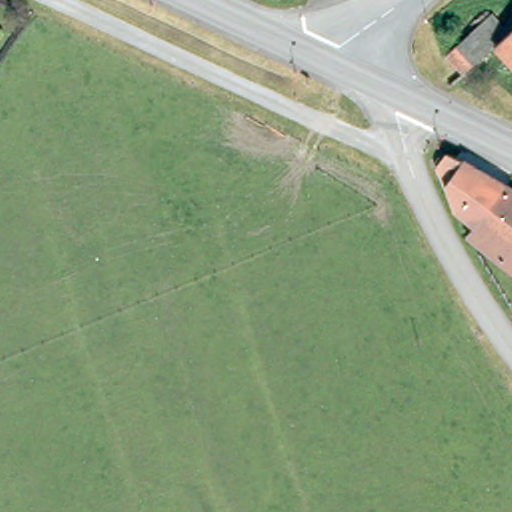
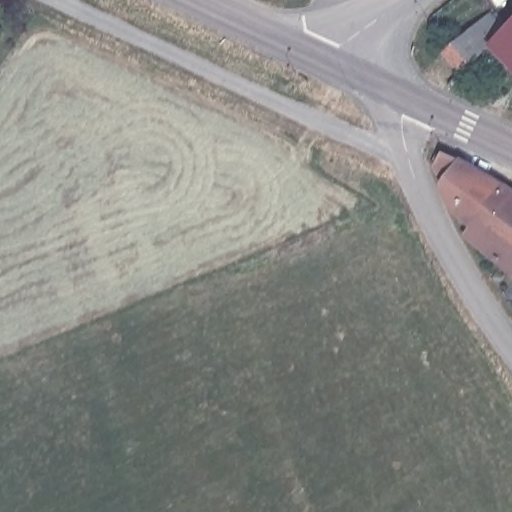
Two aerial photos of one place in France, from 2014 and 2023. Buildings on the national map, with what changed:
unchanged [(494,43),(489,47),(477,57),(458,74),(441,53),(476,24),(494,43)]
unchanged [(489,47),(494,43),(512,27),(512,73),(489,47)]
unchanged [(439,164),(434,150),(439,147),(454,153),(469,161),(501,178),(471,218),(453,202),(449,196),(437,166),(439,164)]
unchanged [(471,218),(501,178),(512,187),(512,266),(464,226),(471,218)]

